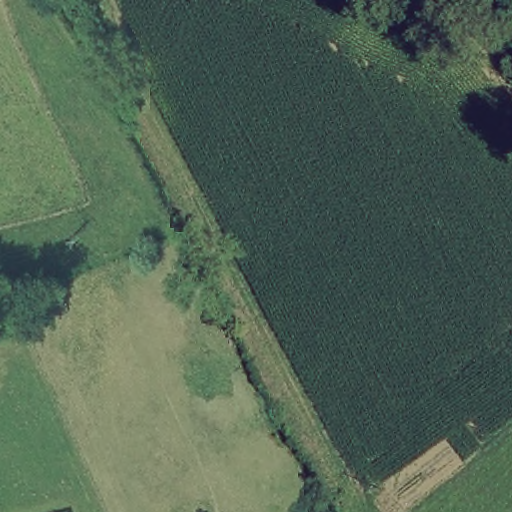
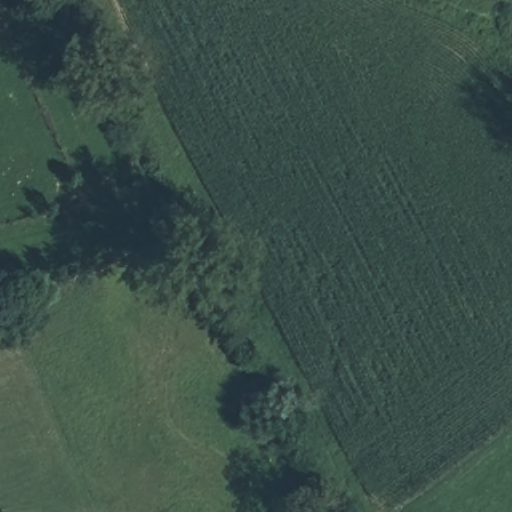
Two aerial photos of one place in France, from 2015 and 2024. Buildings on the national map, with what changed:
[]

